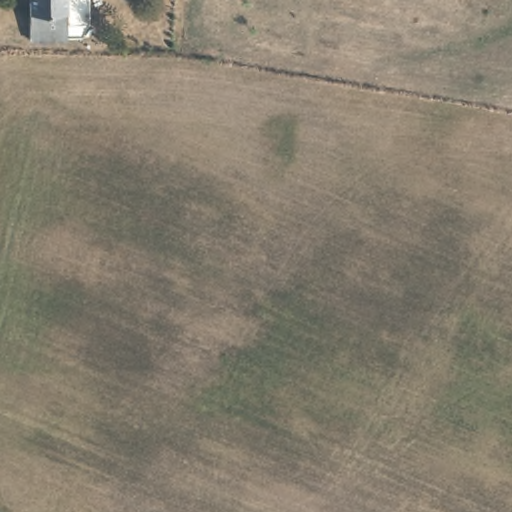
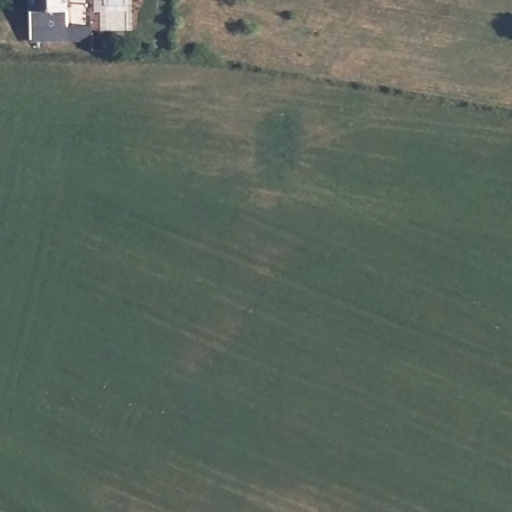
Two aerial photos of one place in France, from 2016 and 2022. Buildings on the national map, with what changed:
unchanged [(31,48),(32,34),(32,26),(32,0),(71,0),(70,27),(70,35),(70,48),(31,48)]

